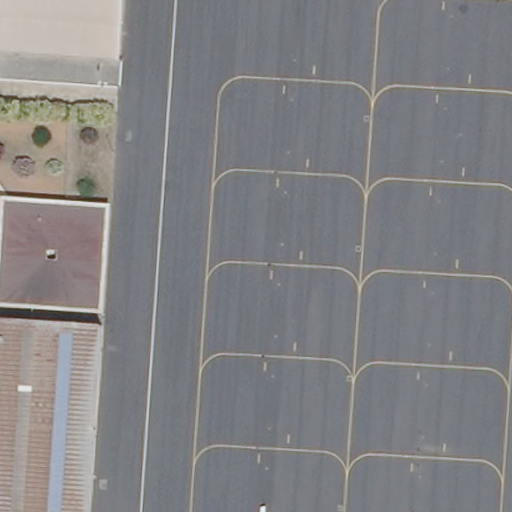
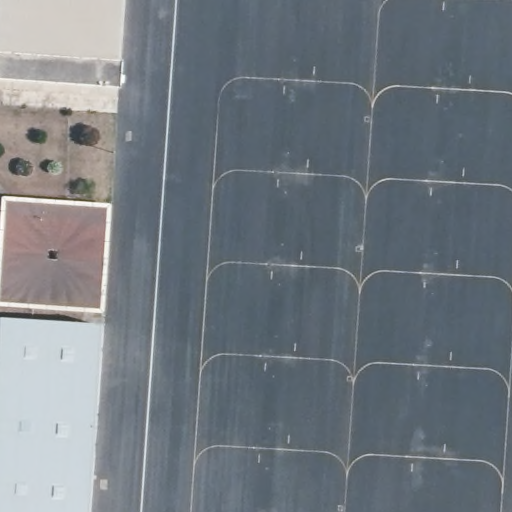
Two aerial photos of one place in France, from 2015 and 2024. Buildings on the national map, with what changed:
unchanged [(120,88),(0,80),(0,0),(125,0),(120,88)]
unchanged [(105,313),(0,306),(0,217),(2,195),(112,202),(105,313)]
unchanged [(103,323),(92,512),(0,512),(0,370),(3,317),(103,323)]

